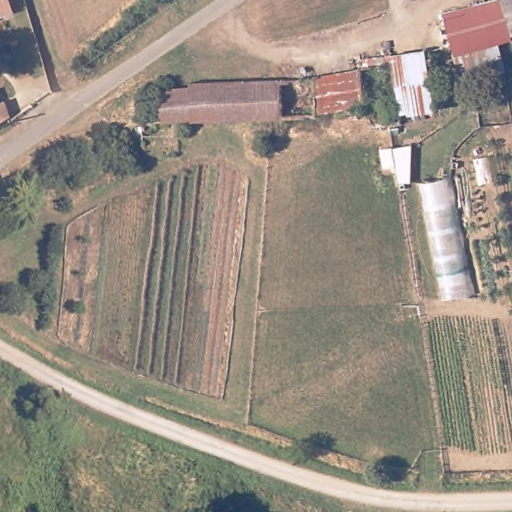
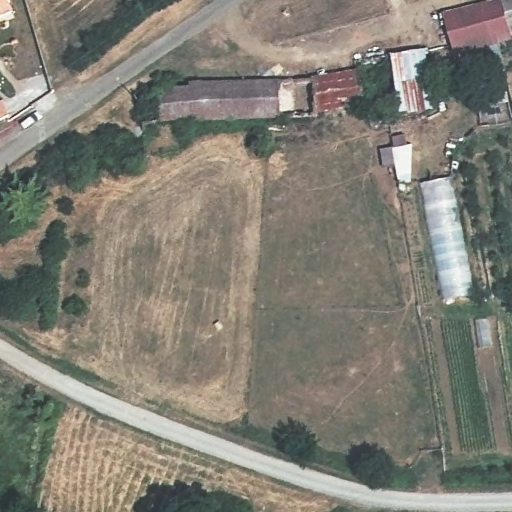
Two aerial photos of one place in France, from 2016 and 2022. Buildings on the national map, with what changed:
unchanged [(16,0),(19,11),(0,18),(0,0),(16,0)]
unchanged [(512,36),(457,52),(449,14),(506,0),(510,0),(512,8),(512,36)]
unchanged [(512,0),(512,8),(510,0),(512,0)]
unchanged [(426,49),(437,107),(401,114),(390,54),(426,49)]
unchanged [(285,116),(195,118),(167,119),(166,109),(164,109),(159,108),(155,103),(154,97),(157,91),(162,89),(167,89),(194,88),(193,84),(285,79),(285,116)]
unchanged [(4,102),(15,98),(21,113),(0,120),(0,93),(4,102)]
unchanged [(454,174),(478,293),(442,300),(419,183),(454,174)]

